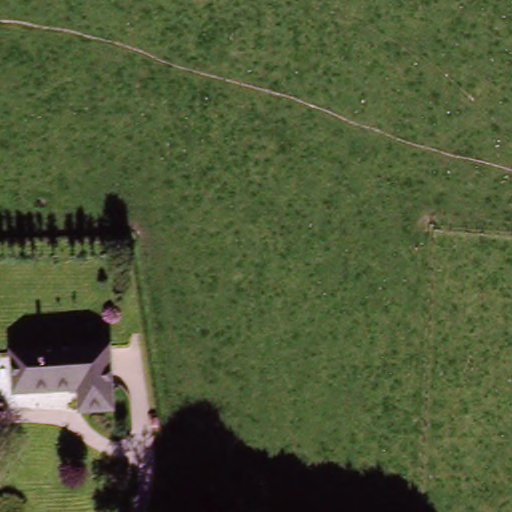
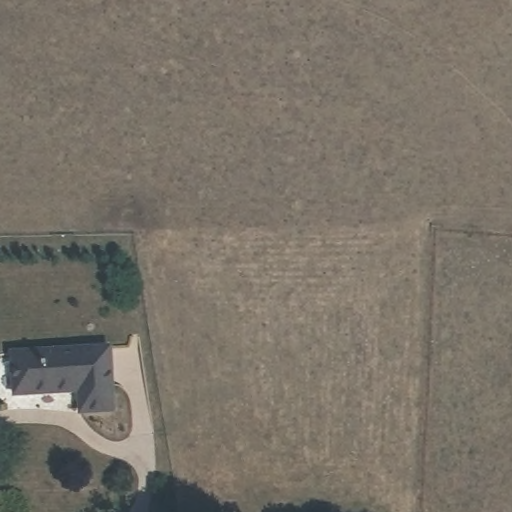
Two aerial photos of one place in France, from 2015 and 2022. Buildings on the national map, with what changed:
unchanged [(75,384),(16,396),(9,357),(102,340),(114,402),(80,408),(75,384)]

